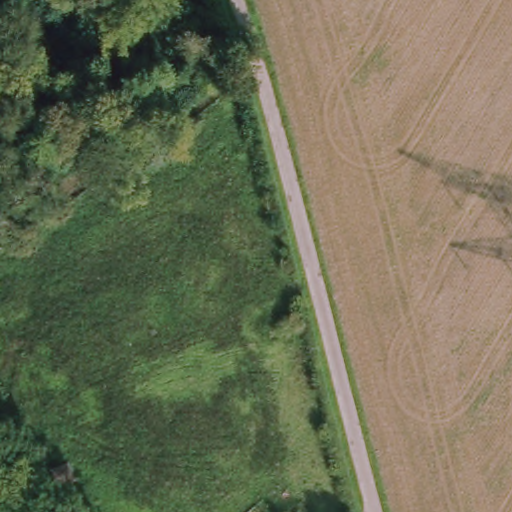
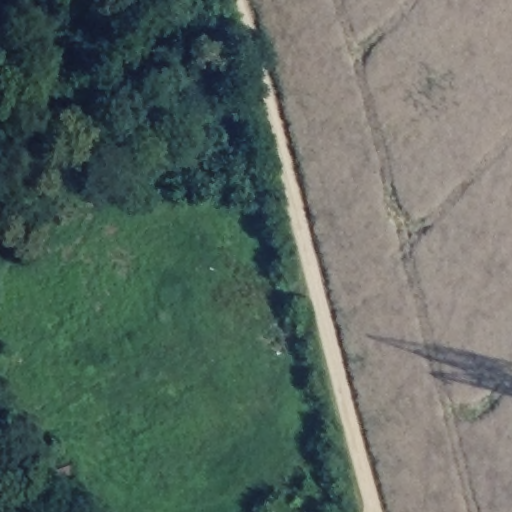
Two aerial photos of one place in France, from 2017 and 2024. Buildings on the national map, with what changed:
unchanged [(63,465),(83,491),(69,502),(49,476),(63,465)]

